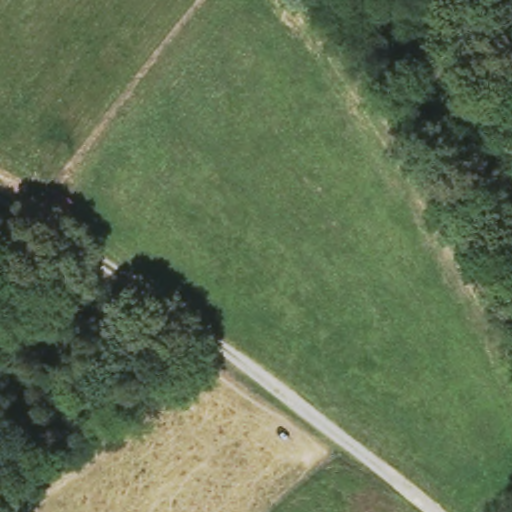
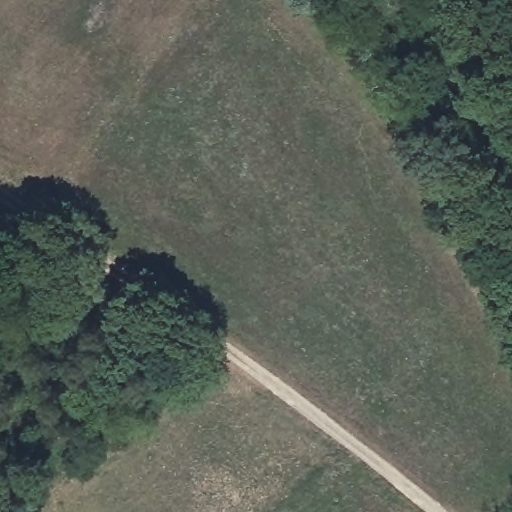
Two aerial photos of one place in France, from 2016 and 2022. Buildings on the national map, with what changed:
unchanged [(65,218),(47,207),(60,187),(77,196),(65,218)]

